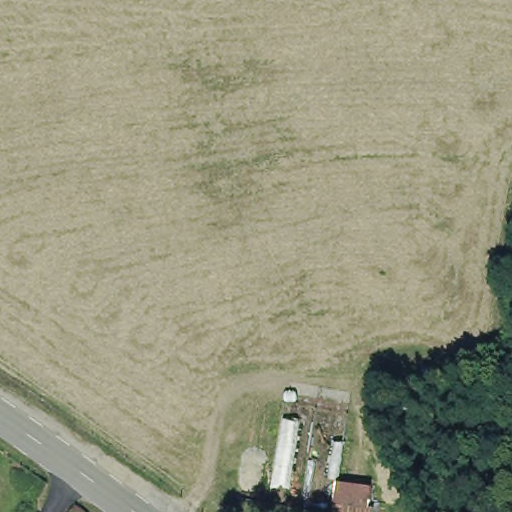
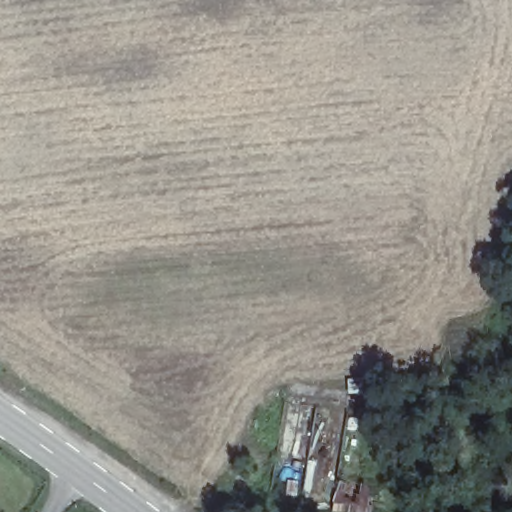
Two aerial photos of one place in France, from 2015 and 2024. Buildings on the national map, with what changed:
unchanged [(374,485),(372,509),(385,509),(385,512),(336,512),(339,482),(374,485)]

